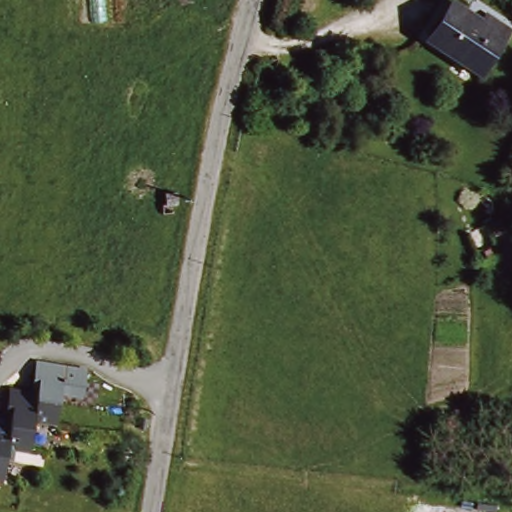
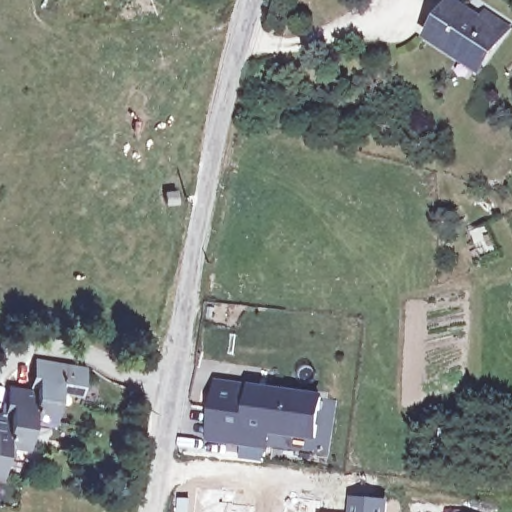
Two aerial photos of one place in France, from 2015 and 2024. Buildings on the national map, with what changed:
unchanged [(434,37),(457,2),(485,20),(489,14),(510,28),(482,69),(434,37)]
unchanged [(183,201),(172,203),(171,191),(182,190),(183,201)]
unchanged [(9,423),(12,392),(34,396),(39,365),(89,373),(85,400),(63,397),(59,427),(37,424),(33,455),(12,451),(7,482),(0,481),(0,422),(9,423)]
new [(219,384),(322,399),(317,438),(270,432),(267,447),(210,439),(219,384)]
unchanged [(154,417),(152,427),(147,427),(149,416),(154,417)]
new [(350,495),(390,499),(389,512),(348,512),(350,495)]

